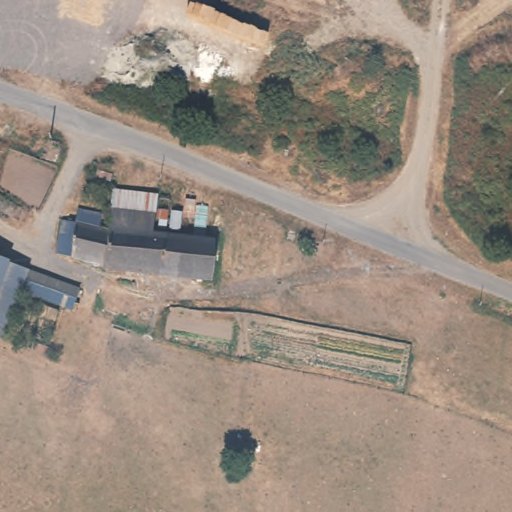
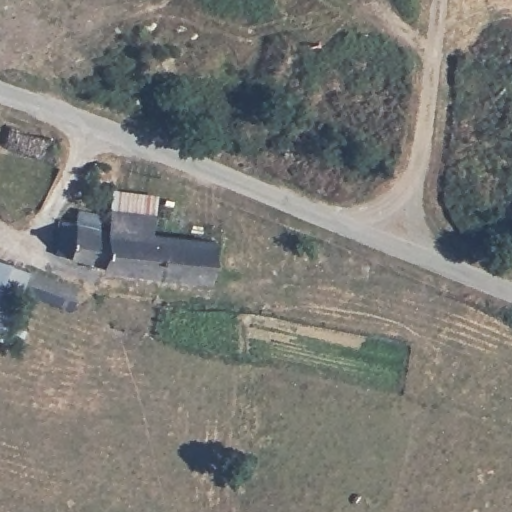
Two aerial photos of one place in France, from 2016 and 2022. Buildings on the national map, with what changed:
unchanged [(151,215),(148,234),(215,243),(213,284),(99,268),(99,265),(67,260),(67,252),(63,252),(59,249),(58,245),(59,241),(64,235),(60,235),(62,221),(103,227),(106,208),(151,215)]
unchanged [(69,307),(22,290),(6,285),(0,302),(0,255),(30,267),(29,272),(76,289),(69,307)]

